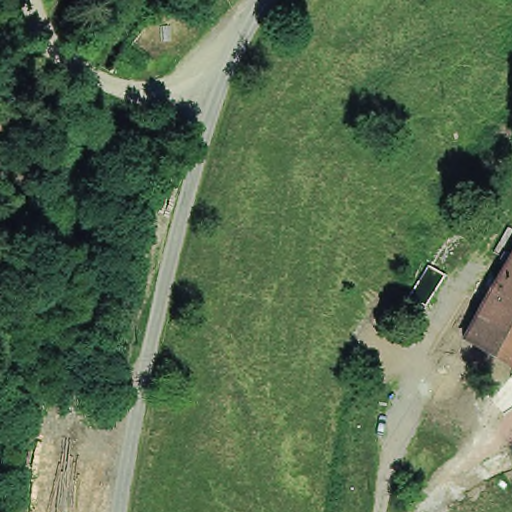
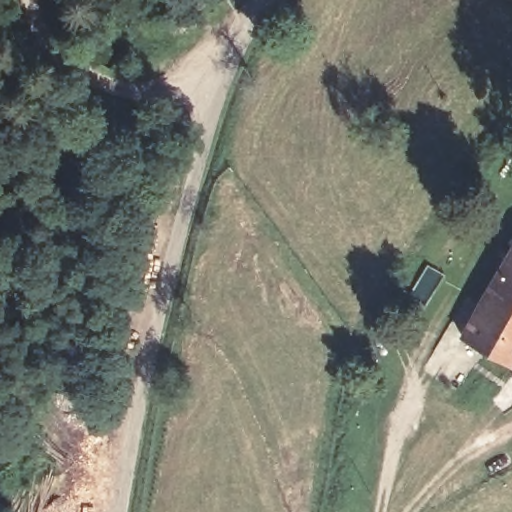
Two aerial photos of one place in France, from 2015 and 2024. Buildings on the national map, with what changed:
unchanged [(465,331),(512,249),(512,357),(465,331)]

